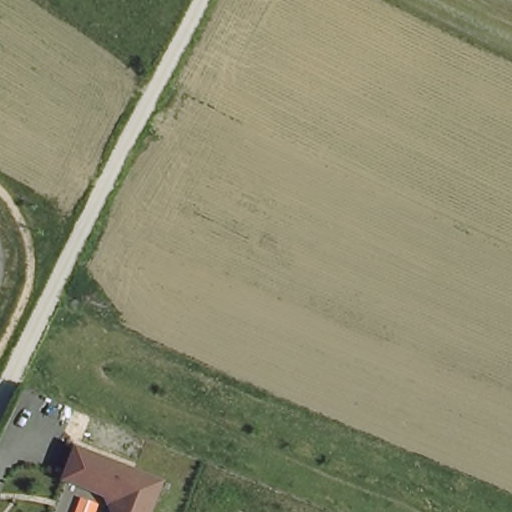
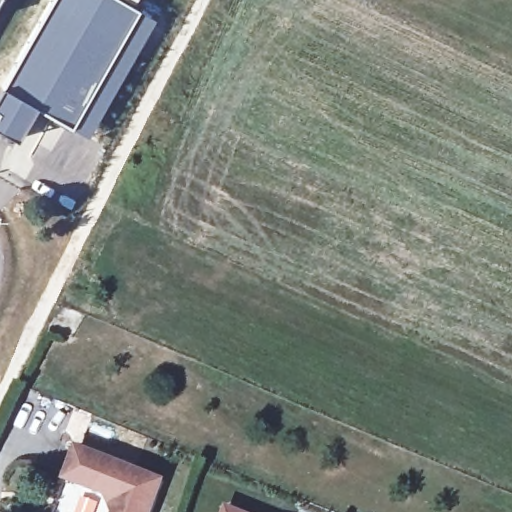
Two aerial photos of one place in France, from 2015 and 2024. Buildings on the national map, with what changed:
new [(37,107),(17,140),(0,130),(0,86),(1,85),(51,0),(121,0),(138,10),(154,19),(87,136),(37,107)]
unchanged [(164,480),(151,512),(119,512),(121,508),(115,506),(108,491),(68,476),(80,447),(164,480)]
new [(248,512),(225,512),(229,504),(248,512)]

